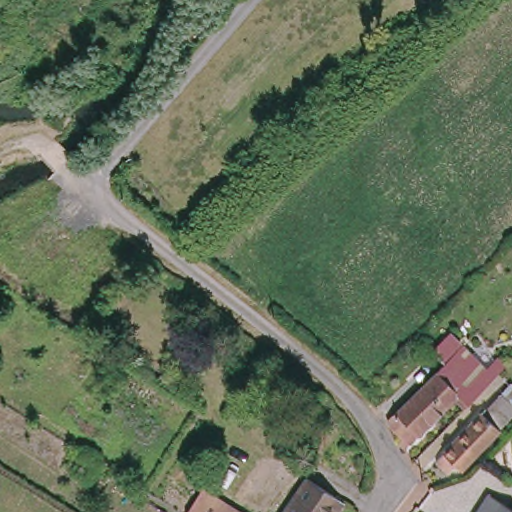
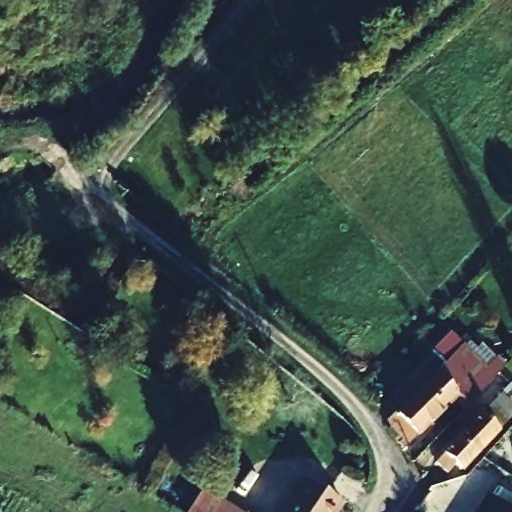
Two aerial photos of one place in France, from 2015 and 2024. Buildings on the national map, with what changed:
unchanged [(466,346),(483,367),(498,356),(510,370),(464,418),(455,410),(413,447),(385,425),(466,346)]
unchanged [(502,394),(507,398),(501,403),(512,414),(512,417),(479,452),(473,447),(464,456),(454,445),(502,394)]
unchanged [(342,508),(339,512),(286,512),(305,484),(342,508)]
unchanged [(229,511),(230,512),(188,512),(201,493),(229,511)]
unchanged [(512,511),(512,512),(477,512),(488,495),(512,511)]

